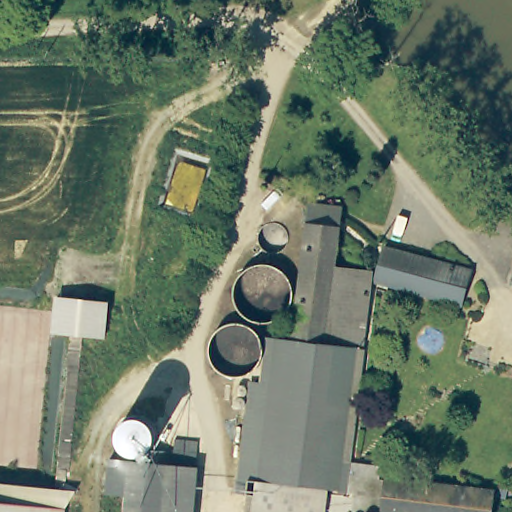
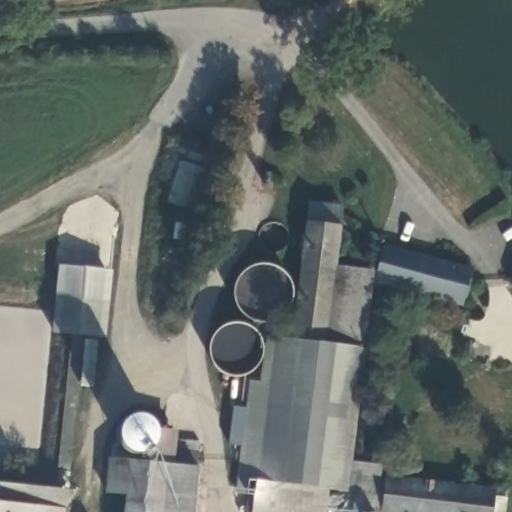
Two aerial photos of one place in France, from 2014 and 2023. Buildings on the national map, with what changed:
unchanged [(336,206),(328,263),(372,268),(361,345),(285,336),(304,202),(336,206)]
unchanged [(467,271),(458,303),(372,280),(381,248),(467,271)]
new [(109,302),(55,296),(57,264),(114,270),(109,302)]
unchanged [(512,275),(512,277),(511,276),(512,275)]
unchanged [(55,296),(109,302),(105,338),(51,333),(55,296)]
unchanged [(347,491),(320,488),(317,512),(243,512),(246,492),(239,491),(241,476),(231,474),(244,382),(256,384),(263,333),(285,336),(361,345),(345,476),(382,481),(383,476),(488,490),(485,512),(376,512),(345,507),(347,491)]
unchanged [(145,453),(137,456),(127,455),(122,450),(118,442),(116,435),(118,427),(123,421),(130,417),(139,416),(147,419),(152,422),(156,429),(157,436),(155,442),(151,447),(145,453)]
unchanged [(184,439),(198,440),(196,464),(172,462),(175,438),(184,439)]
unchanged [(125,495),(107,493),(110,457),(129,460),(125,495)]
unchanged [(172,464),(197,467),(193,512),(124,512),(129,460),(172,464)]
unchanged [(65,509),(65,512),(0,512),(0,483),(75,491),(65,509)]
unchanged [(503,512),(493,512),(493,510),(503,512)]

